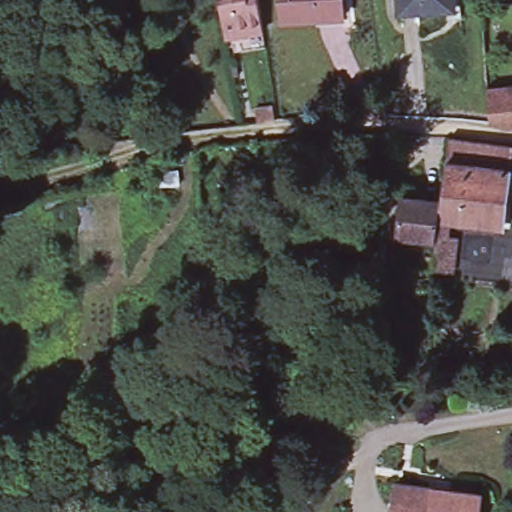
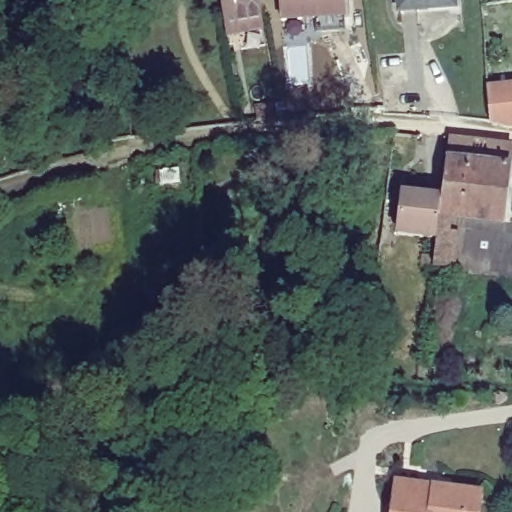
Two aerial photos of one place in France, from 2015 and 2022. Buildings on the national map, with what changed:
unchanged [(220,26),(215,0),(254,0),(257,19),(260,37),(223,44),(220,26)]
unchanged [(279,17),(277,0),(338,0),(339,12),(279,17)]
unchanged [(430,9),(398,8),(398,0),(454,0),(454,2),(430,2),(430,9)]
unchanged [(489,118),(488,85),(512,83),(512,123),(508,122),(489,118)]
unchanged [(276,120),(259,122),(258,107),(274,106),(276,120)]
unchanged [(511,140),(505,161),(446,152),(449,129),(511,140)]
unchanged [(441,191),(446,152),(505,161),(489,215),(439,211),(441,191)]
unchanged [(433,257),(436,232),(398,227),(402,187),(441,191),(439,211),(489,215),(512,216),(512,273),(432,265),(433,257)]
unchanged [(175,431),(171,457),(143,452),(148,427),(175,431)]
unchanged [(395,482),(481,493),(478,512),(391,512),(395,482)]

